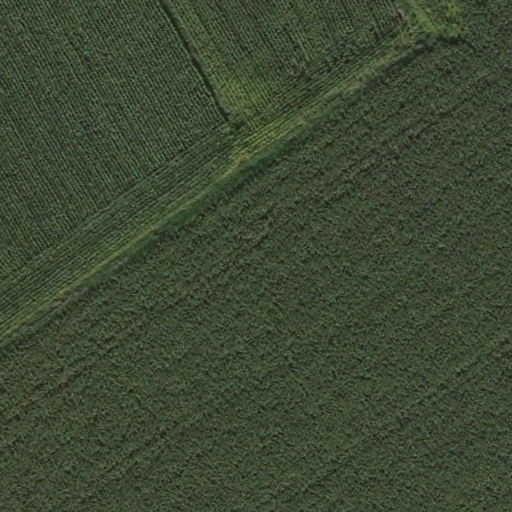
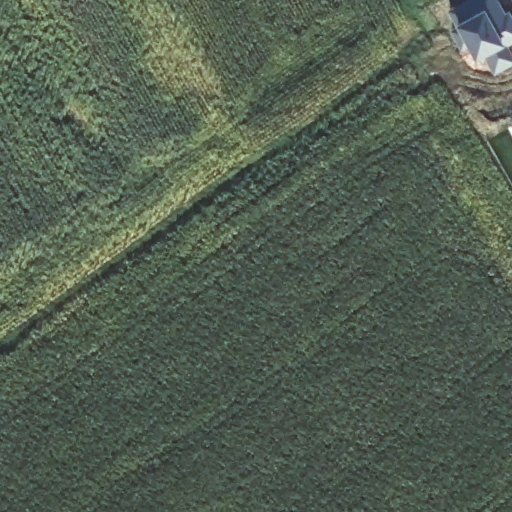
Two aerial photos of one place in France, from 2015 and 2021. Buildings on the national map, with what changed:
new [(471,0),(499,0),(502,6),(491,11),(497,21),(507,15),(512,24),(512,42),(503,46),(511,62),(492,72),(484,57),(475,62),(467,46),(460,50),(451,32),(457,29),(448,12),(471,0)]

